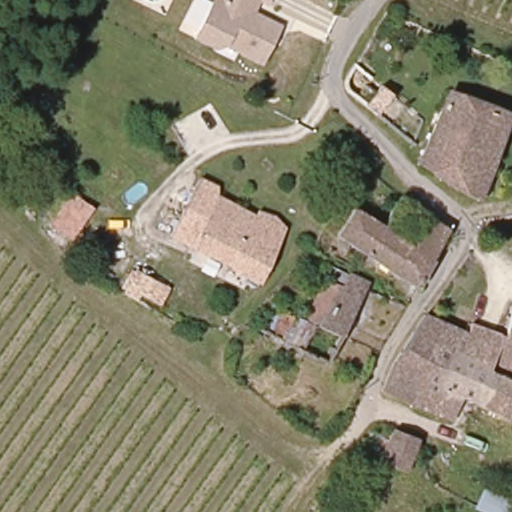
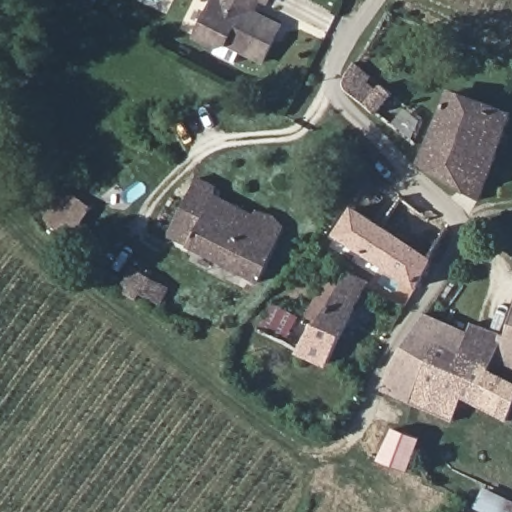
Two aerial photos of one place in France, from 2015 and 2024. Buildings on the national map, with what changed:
unchanged [(261,5),(257,14),(281,24),(263,66),(222,47),(218,52),(192,40),(209,0),(274,0),(270,9),(261,5)]
unchanged [(380,76),(392,85),(375,110),(360,100),(356,98),(348,92),(343,80),(346,70),(349,66),(354,59),(369,69),(380,76)]
unchanged [(453,88),(512,113),(512,123),(483,196),(482,195),(479,194),(423,160),(424,158),(429,145),(453,88)]
unchanged [(426,110),(420,118),(400,105),(406,96),(426,110)]
unchanged [(91,207),(68,239),(49,224),(71,193),(91,207)]
unchanged [(247,216),(251,209),(272,219),(281,228),(255,278),(185,241),(208,196),(247,216)]
unchanged [(358,205),(407,243),(435,216),(453,234),(415,282),(336,234),(358,205)]
unchanged [(134,266),(141,270),(148,257),(157,262),(139,296),(123,288),(134,266)]
unchanged [(307,317),(345,270),(372,287),(345,337),(316,327),(292,349),(261,330),(275,307),(307,317)]
unchanged [(512,302),(512,371),(493,365),(504,329),(512,302)]
unchanged [(467,328),(459,354),(450,352),(437,348),(435,348),(410,401),(379,389),(381,383),(387,362),(418,313),(467,328)]
unchanged [(467,328),(470,319),(504,329),(493,365),(488,364),(459,354),(467,328)]
unchanged [(439,413),(410,401),(435,348),(437,348),(450,352),(459,354),(488,364),(493,365),(489,377),(511,383),(512,383),(512,424),(460,403),(454,419),(439,413)]
unchanged [(387,424),(405,431),(406,431),(417,434),(412,448),(409,454),(405,467),(374,454),(387,424)]

